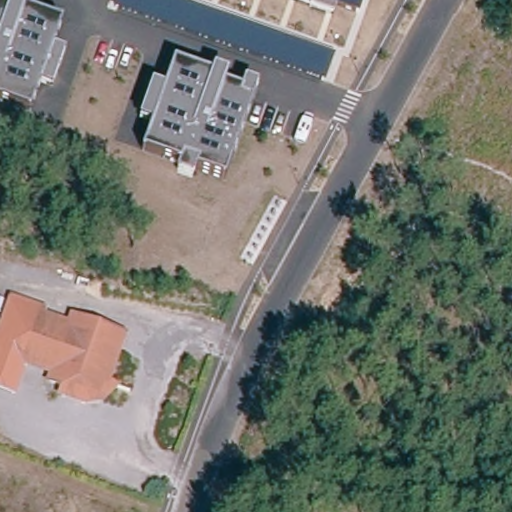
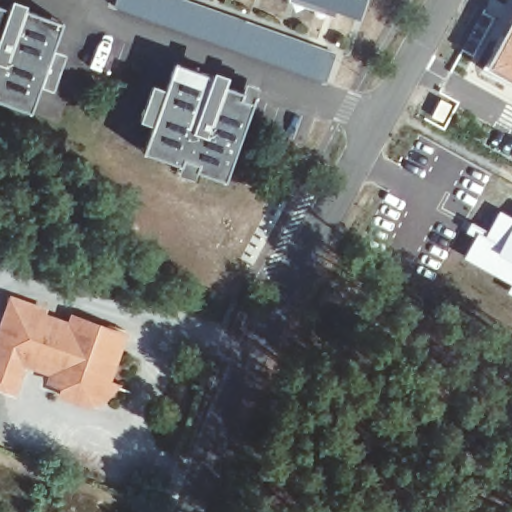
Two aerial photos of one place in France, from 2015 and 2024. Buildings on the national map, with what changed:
unchanged [(118,0),(185,0),(335,54),(325,84),(116,7),(118,0)]
unchanged [(359,19),(335,10),(333,16),(288,0),(365,0),(359,19)]
unchanged [(10,11),(13,1),(27,6),(25,11),(62,24),(54,50),(65,54),(52,90),(40,86),(31,112),(0,102),(0,8),(10,11)]
new [(512,22),(512,85),(486,71),(512,22)]
unchanged [(213,77),(215,72),(228,78),(225,87),(241,93),(245,82),(258,86),(253,103),(225,181),(196,171),(192,180),(177,174),(180,165),(144,152),(153,126),(140,120),(152,85),(166,91),(175,63),(213,77)]
new [(485,232),(499,208),(512,215),(512,295),(506,292),(510,285),(461,257),(478,228),(485,232)]
unchanged [(50,309),(47,317),(40,314),(23,361),(29,363),(16,397),(0,391),(0,327),(12,296),(50,309)]
unchanged [(50,381),(53,372),(29,363),(23,361),(40,314),(47,317),(70,325),(74,317),(110,331),(124,336),(118,352),(100,400),(50,381)]

